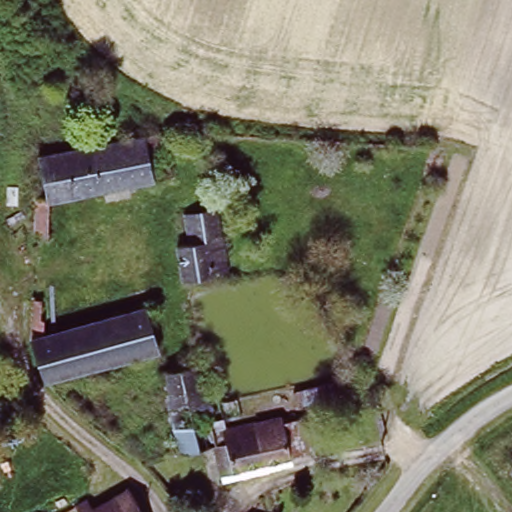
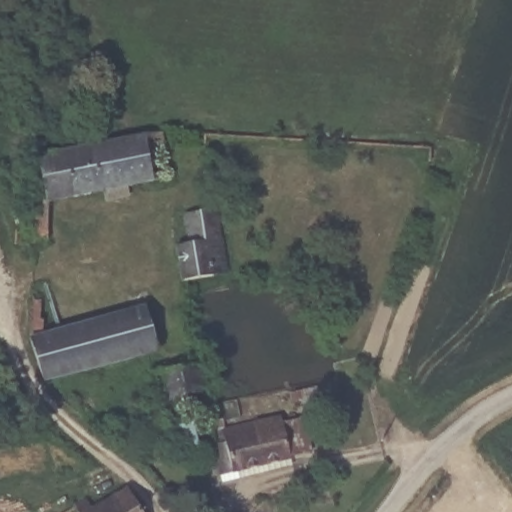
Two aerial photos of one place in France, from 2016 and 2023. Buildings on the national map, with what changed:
unchanged [(38,196),(46,194),(39,154),(164,130),(173,177),(53,200),(50,235),(36,234),(38,196)]
unchanged [(178,243),(192,239),(186,211),(214,205),(221,233),(223,232),(231,266),(224,269),(224,271),(203,276),(186,280),(178,243)]
unchanged [(33,341),(126,317),(121,298),(149,291),(154,309),(143,312),(153,354),(44,382),(33,341)]
unchanged [(255,420),(256,423),(283,417),(284,422),(306,417),(314,447),(291,452),(291,456),(219,471),(211,442),(199,445),(181,451),(158,371),(194,361),(211,417),(218,440),(223,439),(220,428),(255,420)]
unchanged [(303,389),(334,382),(336,396),(306,403),(303,389)]
unchanged [(94,510),(123,494),(129,490),(143,512),(79,512),(75,505),(88,499),(94,510)]

